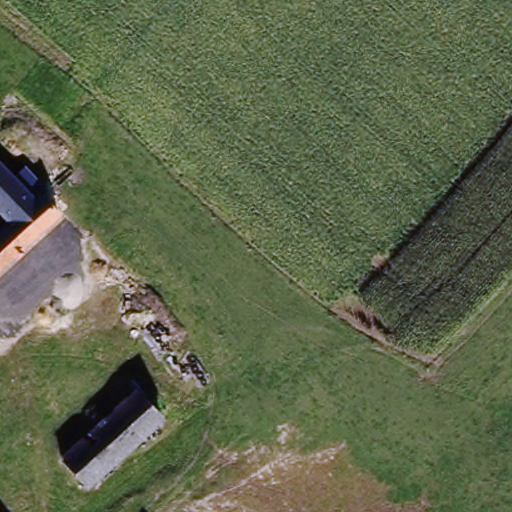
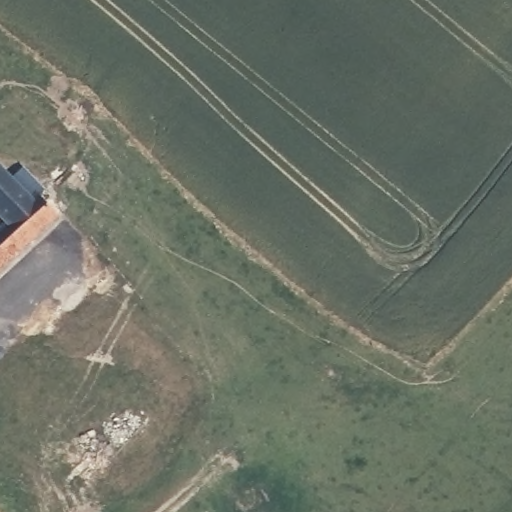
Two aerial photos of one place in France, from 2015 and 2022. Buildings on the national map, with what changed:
unchanged [(6,182),(20,170),(42,195),(40,200),(57,220),(0,273),(0,233),(6,227),(0,221),(0,175),(6,182)]
demolished [(95,484),(70,457),(144,391),(170,417),(95,484)]

